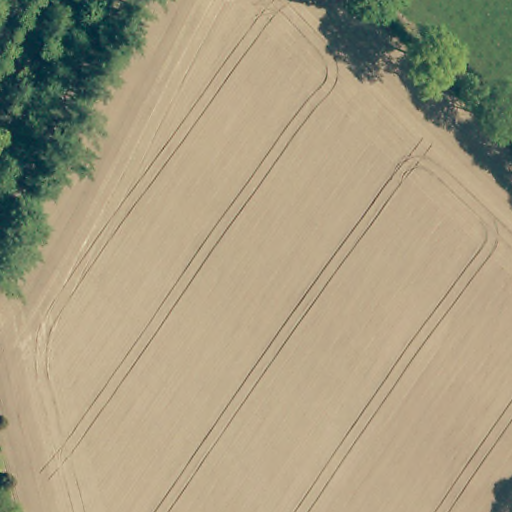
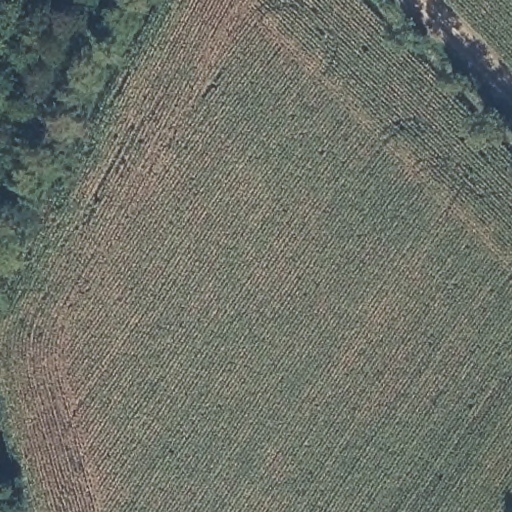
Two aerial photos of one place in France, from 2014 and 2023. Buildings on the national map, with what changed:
[]

